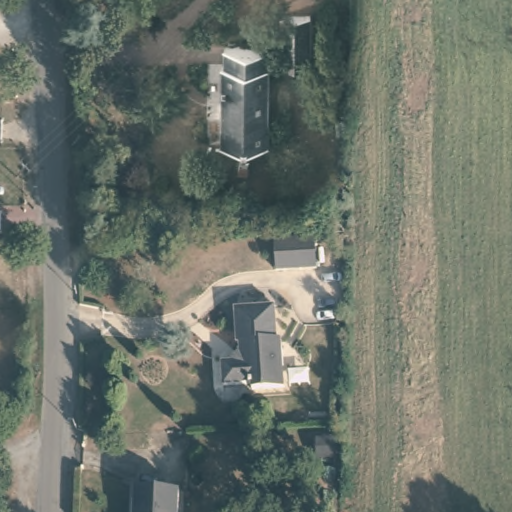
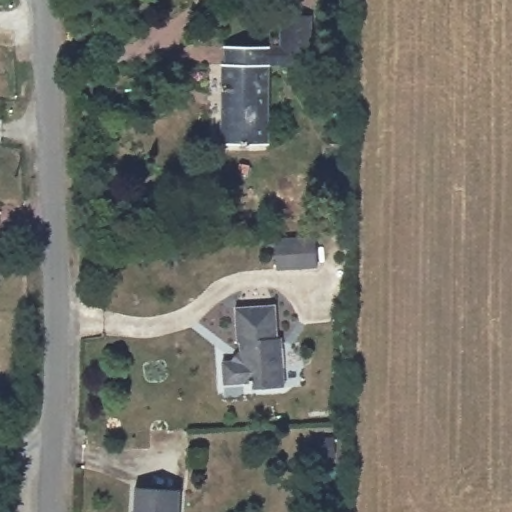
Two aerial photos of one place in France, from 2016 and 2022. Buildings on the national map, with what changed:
unchanged [(267,141),(222,140),(225,60),(229,59),(229,41),(282,42),(283,11),(316,12),(315,64),(270,64),(267,141)]
unchanged [(277,237),(315,237),(314,265),(275,263),(277,237)]
unchanged [(273,345),(277,345),(276,390),(246,390),(246,381),(217,381),(216,360),(229,357),(235,349),(235,310),(275,310),(273,345)]
unchanged [(136,480),(180,481),(179,512),(135,512),(136,480)]

